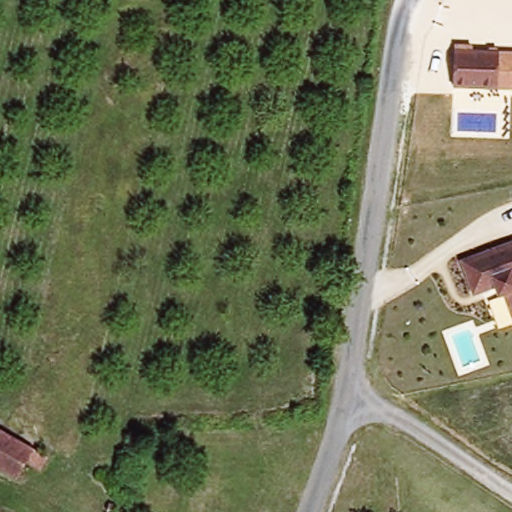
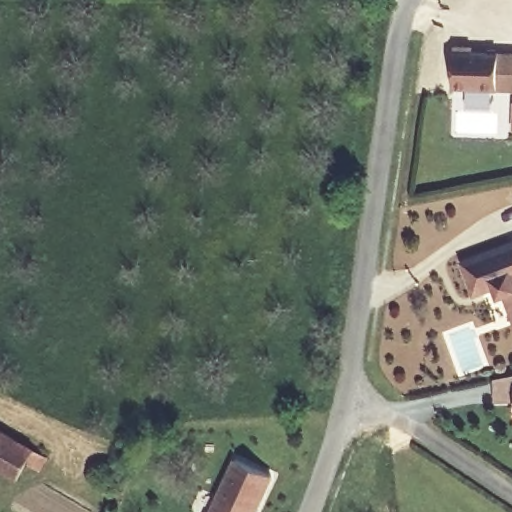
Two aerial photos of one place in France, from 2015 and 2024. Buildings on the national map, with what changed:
unchanged [(512,91),(452,88),(454,50),(512,52),(512,91)]
unchanged [(512,241),(512,314),(506,297),(499,299),(494,289),(473,298),(460,259),(512,241)]
unchanged [(0,469),(0,430),(35,450),(19,479),(0,469)]
new [(271,476),(255,512),(212,512),(235,460),(271,476)]

